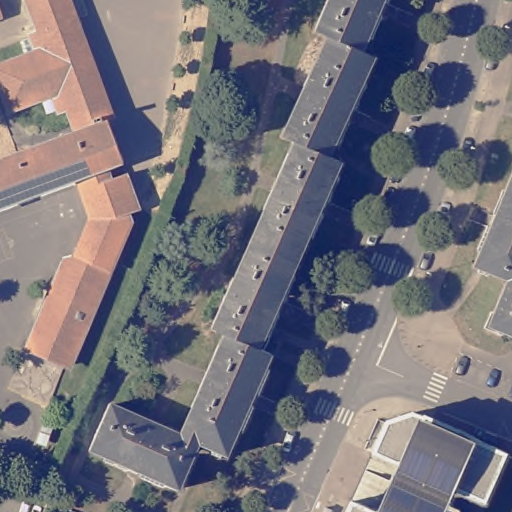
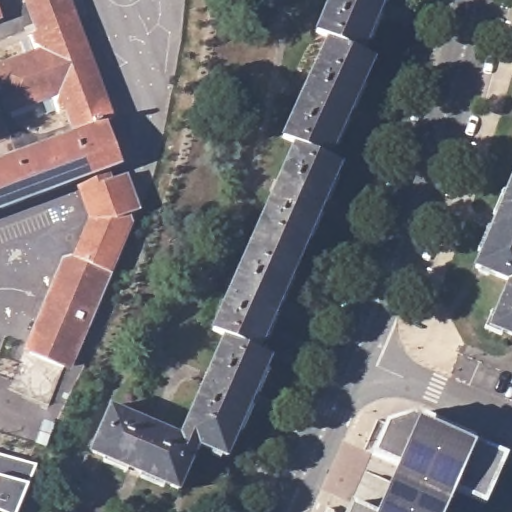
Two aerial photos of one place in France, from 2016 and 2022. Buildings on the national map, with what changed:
unchanged [(0,20),(0,0),(6,17),(0,20)]
unchanged [(0,162),(79,132),(70,109),(56,115),(55,112),(49,115),(43,100),(11,112),(0,82),(0,68),(28,57),(22,42),(31,40),(30,37),(43,32),(31,0),(74,0),(117,119),(112,121),(126,164),(115,169),(80,181),(0,211),(0,162)]
unchanged [(94,450),(113,405),(184,435),(228,336),(217,331),(297,142),(286,137),(330,37),(321,32),(334,0),(387,0),(367,51),(377,57),(333,157),(344,163),(263,350),(274,356),(230,458),(203,448),(185,490),(94,450)]
unchanged [(100,265),(103,260),(83,242),(94,217),(80,181),(115,169),(120,177),(131,172),(144,205),(143,211),(132,215),(137,223),(116,272),(100,265)]
unchanged [(491,321),(510,275),(477,261),(512,176),(512,330),(491,321)]
unchanged [(78,365),(66,369),(34,355),(30,346),(67,258),(76,255),(83,242),(103,260),(100,265),(116,272),(78,365)]
unchanged [(376,450),(387,425),(418,413),(506,455),(486,500),(459,488),(448,512),(377,512),(401,461),(376,450)]
new [(34,487),(31,485),(19,512),(0,512),(0,454),(42,465),(34,487)]
unchanged [(366,512),(348,512),(351,505),(366,512)]

